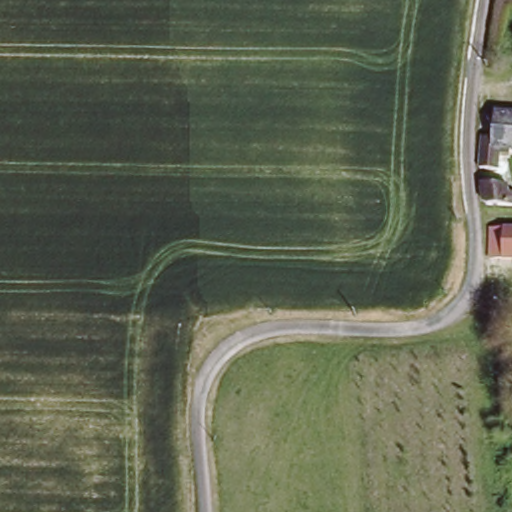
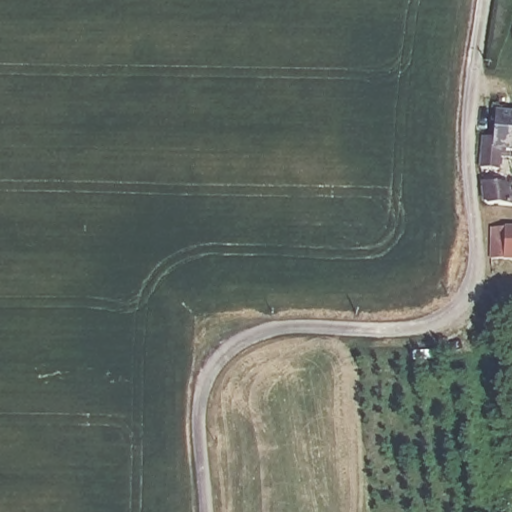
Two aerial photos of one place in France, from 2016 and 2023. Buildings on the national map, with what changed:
unchanged [(502,97),(502,104),(496,104),(497,96),(502,97)]
unchanged [(490,164),(490,133),(490,123),(503,124),(505,109),(512,110),(512,165),(490,164)]
unchanged [(509,184),(508,189),(512,189),(512,202),(481,199),(481,198),(480,182),(509,184)]
unchanged [(493,262),(495,230),(512,232),(512,263),(493,262)]

